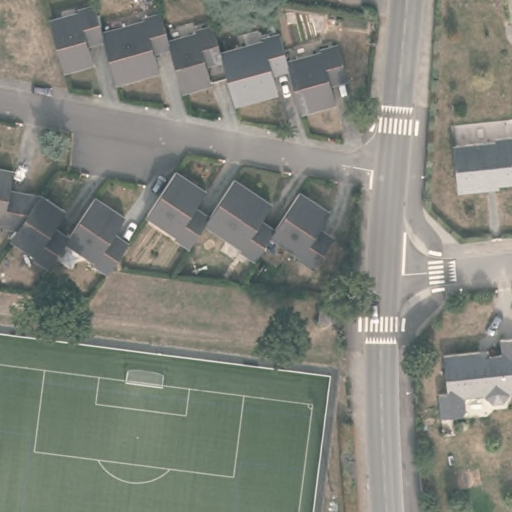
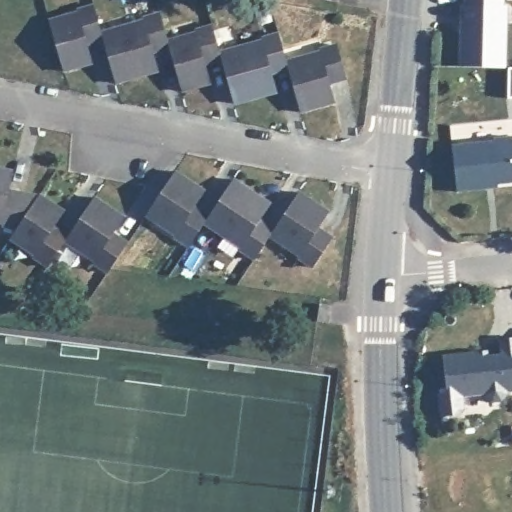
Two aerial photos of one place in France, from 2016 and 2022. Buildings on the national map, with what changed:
new [(462,5),(466,5),(466,0),(506,0),(506,4),(508,4),(506,67),(461,66),(462,5)]
unchanged [(79,12),(79,10),(95,5),(102,32),(105,41),(89,46),(93,64),(64,71),(50,21),(79,12)]
unchanged [(143,20),(144,17),(161,14),(168,41),(171,50),(155,54),(160,74),(117,85),(105,41),(102,32),(143,20)]
unchanged [(197,33),(197,30),(213,26),(220,51),(224,62),(207,67),(212,84),(182,91),(171,50),(168,41),(197,33)]
unchanged [(220,51),(262,39),(261,36),(278,32),(286,62),(288,68),(272,73),(278,92),(235,104),(224,62),(220,51)]
unchanged [(306,57),(303,47),(315,45),(318,54),(323,52),(322,49),(338,45),(346,80),(330,85),(335,103),(301,112),(288,68),(286,62),(306,57)]
new [(512,67),(512,99),(507,99),(508,66),(512,67)]
unchanged [(495,138),(512,136),(512,182),(488,184),(488,187),(458,190),(455,144),(496,141),(495,138)]
unchanged [(176,171),(206,192),(195,209),(210,218),(206,224),(191,247),(176,237),(175,234),(147,215),(164,190),(176,171)]
unchanged [(14,177),(11,195),(40,201),(18,233),(3,230),(4,228),(0,227),(0,174),(14,177)]
unchanged [(210,218),(234,180),(271,205),(261,220),(274,230),(270,236),(255,260),(241,250),(241,247),(206,224),(210,218)]
unchanged [(274,230),(299,194),(329,212),(318,229),(333,239),(314,268),(298,258),(300,255),(270,236),(274,230)]
unchanged [(18,233),(40,201),(41,200),(65,217),(55,233),(68,242),(66,246),(49,272),(34,262),(35,260),(11,244),(18,233)]
unchanged [(94,268),(96,265),(66,246),(68,242),(95,203),(126,222),(114,239),(129,249),(112,275),(109,278),(94,268)]
unchanged [(228,277),(240,260),(251,267),(239,285),(228,277)]
unchanged [(320,305),(332,306),(330,323),(318,322),(320,305)]
unchanged [(480,356),(502,355),(500,340),(512,338),(512,391),(508,391),(508,394),(502,401),(493,402),(485,395),(485,394),(448,397),(444,355),(480,351),(480,356)]

